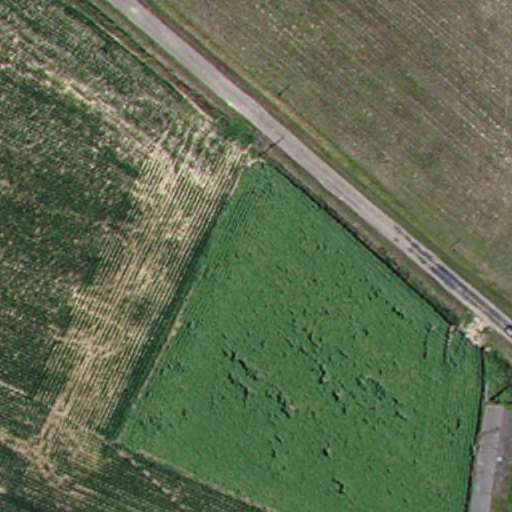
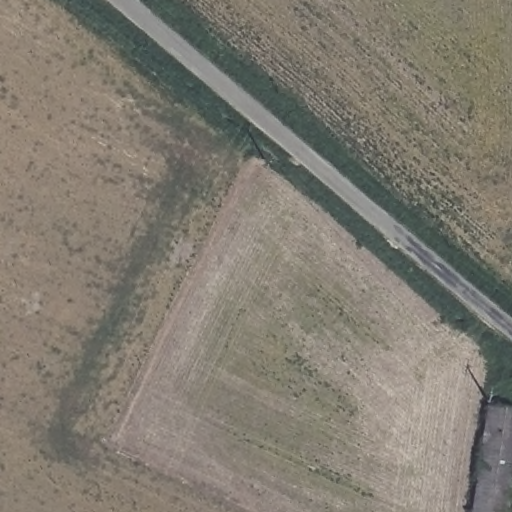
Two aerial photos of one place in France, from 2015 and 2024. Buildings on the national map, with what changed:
unchanged [(479,406),(512,412),(512,443),(501,512),(464,512),(479,406)]

